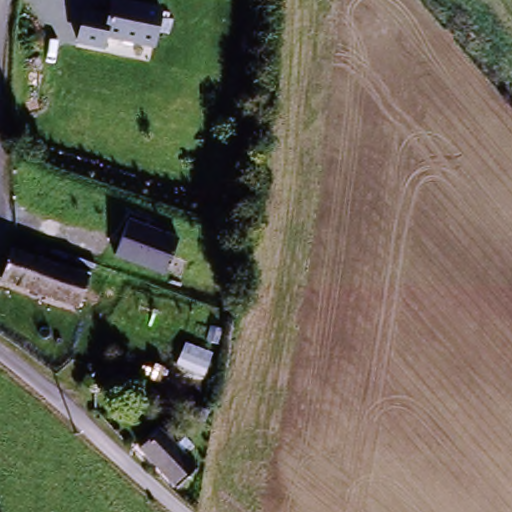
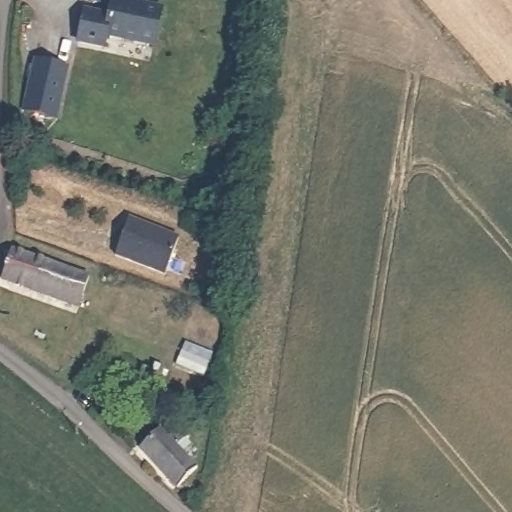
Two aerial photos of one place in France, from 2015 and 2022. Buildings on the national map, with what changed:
unchanged [(109,0),(120,0),(164,7),(156,49),(109,41),(106,52),(76,45),(83,6),(107,10),(109,0)]
new [(36,63),(68,70),(56,119),(25,112),(36,63)]
unchanged [(179,240),(166,273),(111,252),(122,217),(179,240)]
unchanged [(88,285),(77,312),(14,287),(24,261),(88,285)]
unchanged [(144,452),(159,435),(194,466),(180,482),(144,452)]

